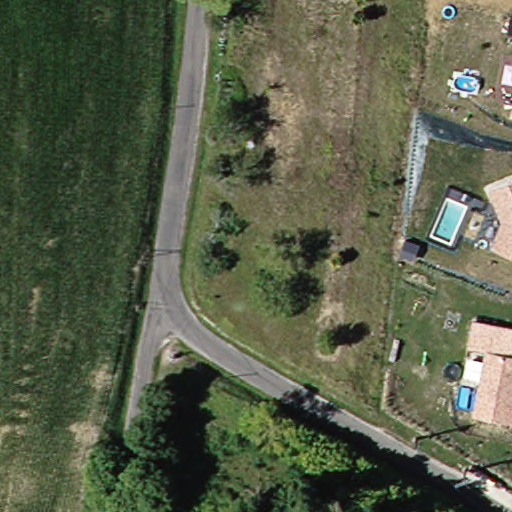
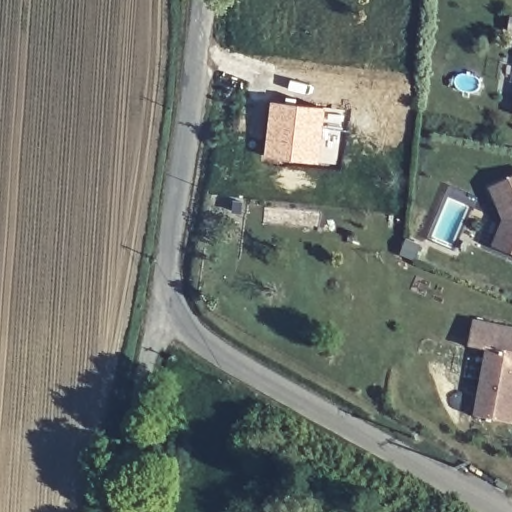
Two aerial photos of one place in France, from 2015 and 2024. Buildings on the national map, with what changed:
new [(320,162),(264,156),(270,100),(325,106),(320,162)]
unchanged [(490,246),(504,221),(490,190),(512,180),(512,256),(490,246)]
unchanged [(477,416),(488,351),(471,347),(476,322),(495,326),(512,329),(512,423),(477,416)]

